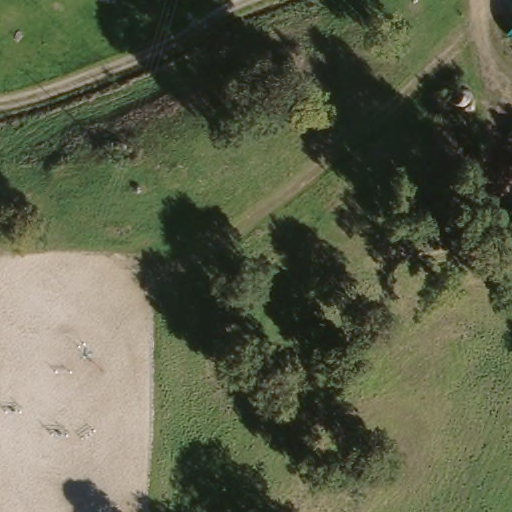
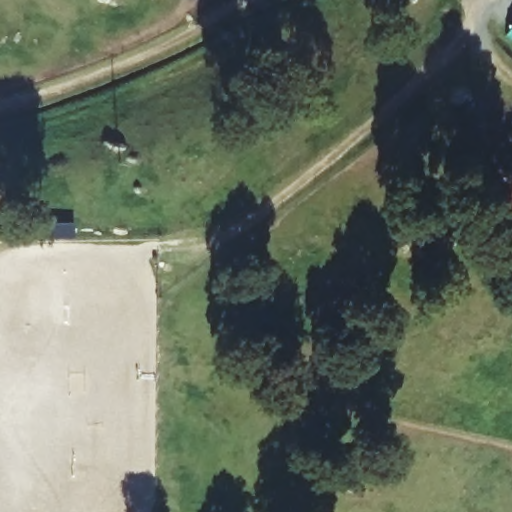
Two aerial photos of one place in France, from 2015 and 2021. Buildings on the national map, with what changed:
unchanged [(512,29),(512,38),(508,34),(512,29)]

